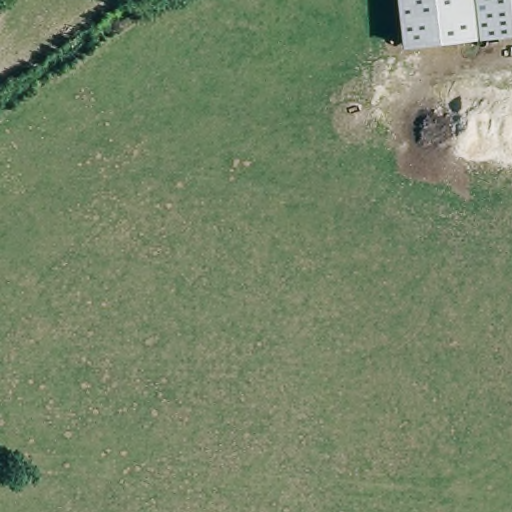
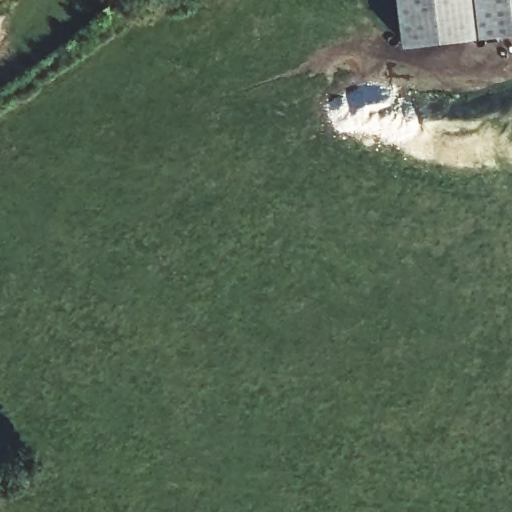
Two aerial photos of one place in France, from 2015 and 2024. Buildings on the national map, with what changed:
unchanged [(406,46),(401,0),(512,0),(512,36),(406,46)]

